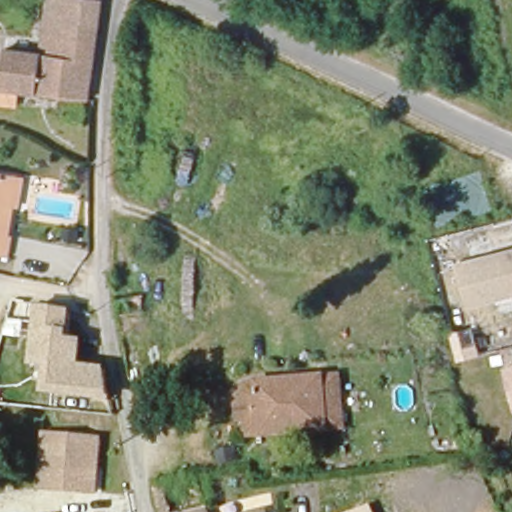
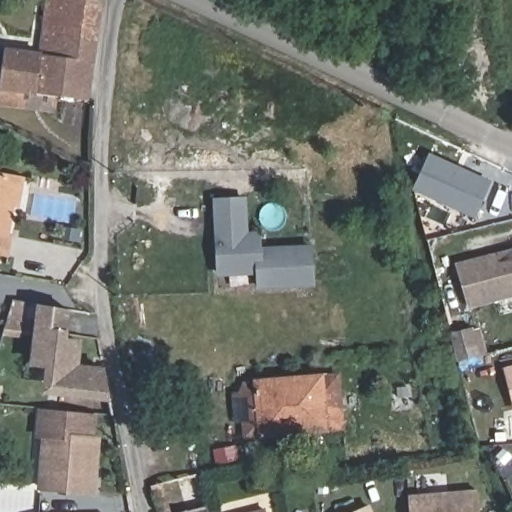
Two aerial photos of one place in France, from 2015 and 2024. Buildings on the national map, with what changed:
unchanged [(17,54),(42,57),(46,0),(100,0),(90,101),(16,93),(0,92),(0,66),(1,53),(17,54)]
new [(432,156),(492,185),(478,215),(477,217),(416,188),(432,156)]
unchanged [(10,259),(0,256),(0,172),(20,176),(31,179),(25,207),(15,204),(6,233),(15,235),(10,259)]
new [(212,199),(246,197),(249,231),(261,231),(261,247),(312,243),(315,286),(256,289),(256,275),(215,277),(212,199)]
unchanged [(471,305),(463,265),(498,258),(503,257),(512,255),(512,297),(471,305)]
unchanged [(44,396),(47,370),(32,367),(39,308),(72,312),(69,339),(83,341),(81,365),(105,368),(110,403),(44,396)]
unchanged [(503,367),(512,365),(512,403),(503,367)]
unchanged [(237,415),(252,415),(253,378),(347,377),(350,428),(238,431),(237,415)]
unchanged [(40,490),(43,434),(44,410),(101,415),(101,438),(97,495),(40,490)]
new [(478,512),(409,512),(408,494),(475,488),(478,512)]
unchanged [(207,512),(173,512),(205,505),(207,512)]
unchanged [(356,512),(370,507),(373,512),(356,512)]

